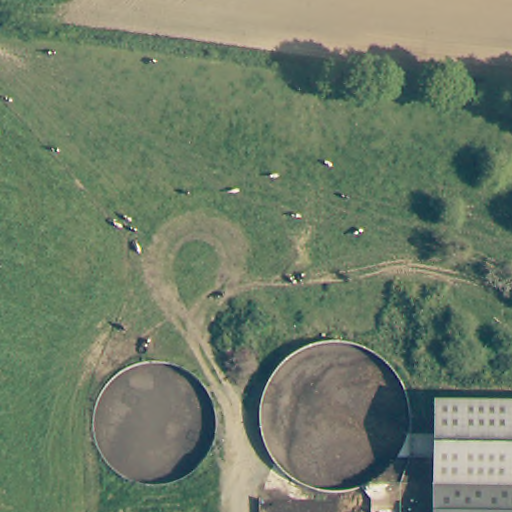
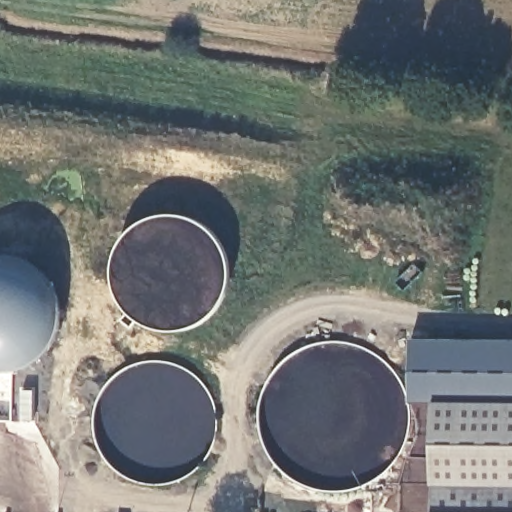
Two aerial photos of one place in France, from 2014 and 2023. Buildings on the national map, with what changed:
new [(411,401),(412,339),(512,341),(512,403),(438,402),(411,401)]
unchanged [(438,402),(512,404),(512,486),(438,486),(438,402)]
unchanged [(512,486),(512,512),(438,512),(438,486),(512,486)]

